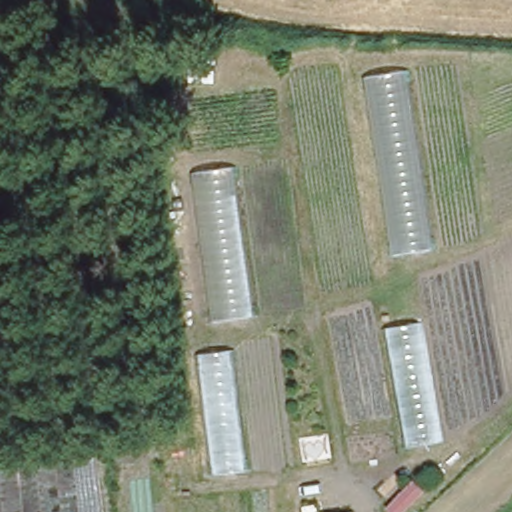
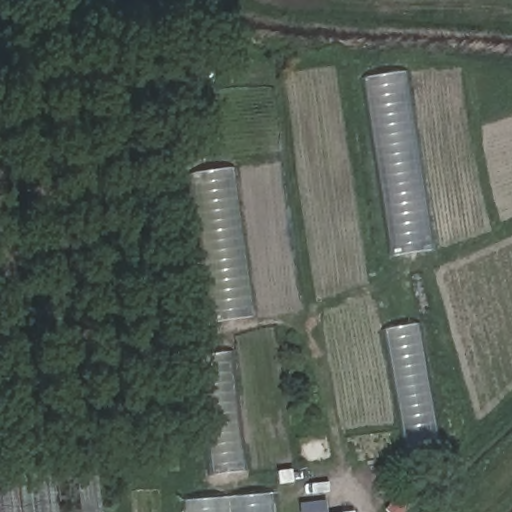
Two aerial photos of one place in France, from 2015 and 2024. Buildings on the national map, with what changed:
unchanged [(434,250),(393,254),(369,75),(409,71),(434,250)]
unchanged [(253,315),(213,321),(192,171),(235,167),(253,315)]
unchanged [(444,441),(407,447),(388,329),(424,323),(444,441)]
unchanged [(213,474),(199,355),(235,351),(248,471),(213,474)]
unchanged [(100,512),(0,512),(0,475),(94,466),(100,512)]
new [(271,494),(273,512),(185,512),(184,501),(271,494)]

